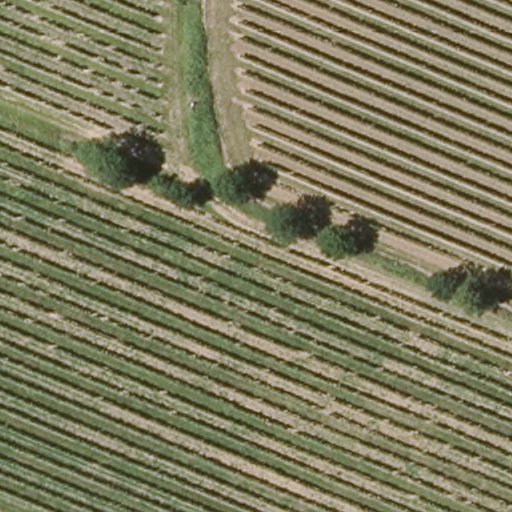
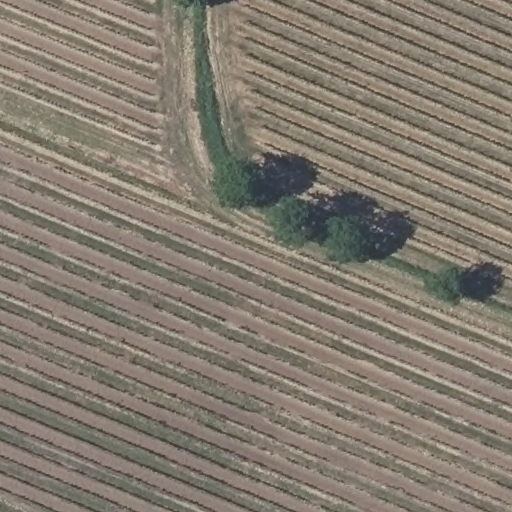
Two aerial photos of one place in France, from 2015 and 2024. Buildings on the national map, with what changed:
[]

